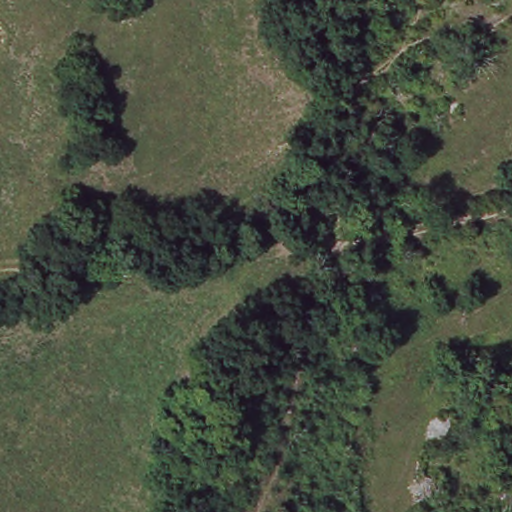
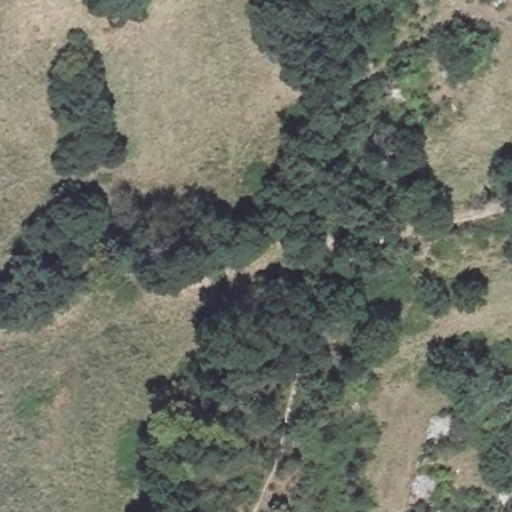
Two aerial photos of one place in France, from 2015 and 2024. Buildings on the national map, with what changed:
unchanged [(372,170),(395,209),(392,210),(360,217),(329,160),(349,148),(357,144),(372,170)]
unchanged [(319,214),(298,225),(297,223),(287,206),(308,195),(319,214)]

